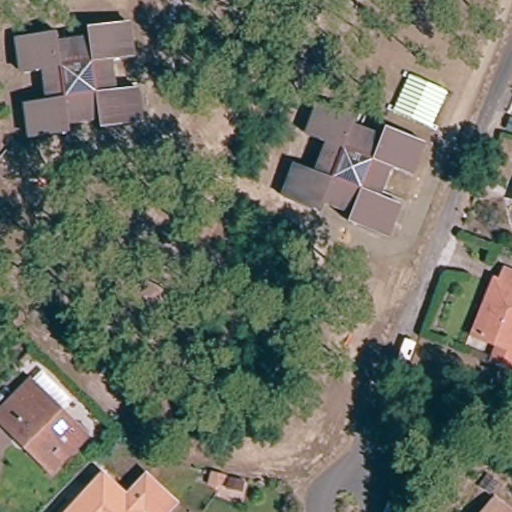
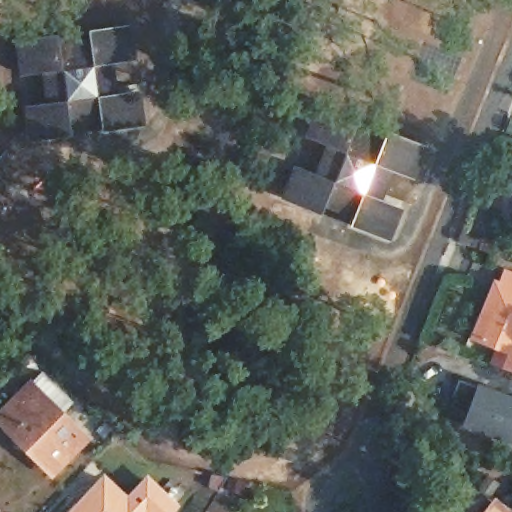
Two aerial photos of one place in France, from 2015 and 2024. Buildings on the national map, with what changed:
unchanged [(23,106),(44,103),(39,74),(18,76),(14,41),(57,36),(58,43),(89,39),(88,31),(130,25),(134,60),(112,63),(116,93),(138,90),(142,126),(101,132),(100,123),(69,127),(70,136),(27,142),(23,106)]
unchanged [(298,166),(317,174),(330,146),(308,137),(321,104),(363,119),(360,129),(390,140),(392,132),(429,145),(416,178),(395,170),(384,199),(405,208),(393,241),(356,227),(360,215),(329,203),(326,214),(285,198),(298,166)]
unchanged [(509,121),(512,123),(512,135),(505,133),(509,121)]
unchanged [(488,315),(483,313),(493,288),(498,290),(504,277),(512,281),(512,354),(511,355),(477,341),(488,315)]
unchanged [(15,441),(0,427),(0,421),(28,390),(37,380),(69,410),(60,421),(84,444),(57,471),(51,477),(15,441)]
new [(512,395),(512,446),(494,439),(460,425),(478,381),(512,395)]
unchanged [(122,507),(142,487),(163,506),(168,511),(168,512),(73,512),(99,485),(122,507)]
unchanged [(512,510),(512,512),(479,512),(493,495),(512,510)]

